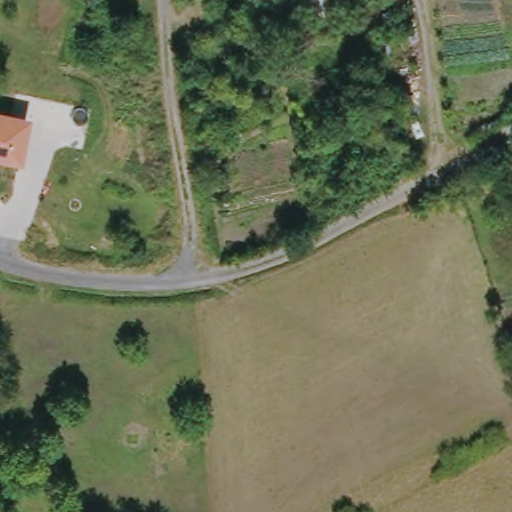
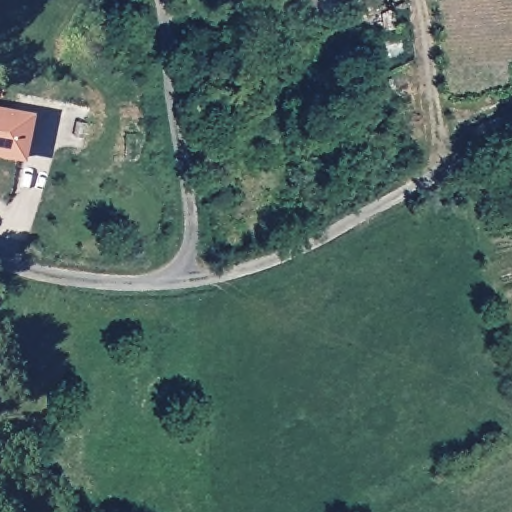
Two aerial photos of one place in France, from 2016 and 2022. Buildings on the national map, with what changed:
unchanged [(30,115),(21,164),(0,159),(0,109),(30,115)]
unchanged [(222,135),(225,176),(209,176),(205,139),(222,135)]

